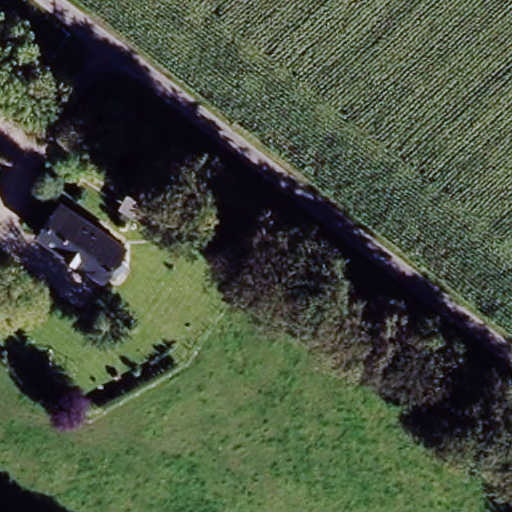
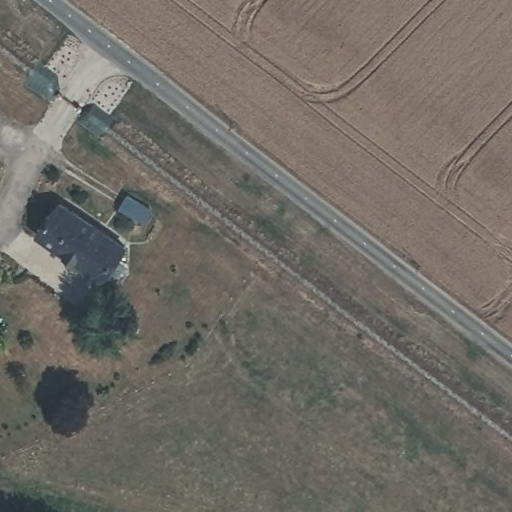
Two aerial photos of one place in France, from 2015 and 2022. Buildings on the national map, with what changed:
unchanged [(132,198),(155,212),(147,225),(124,210),(132,198)]
unchanged [(65,204),(127,248),(103,280),(42,236),(65,204)]

